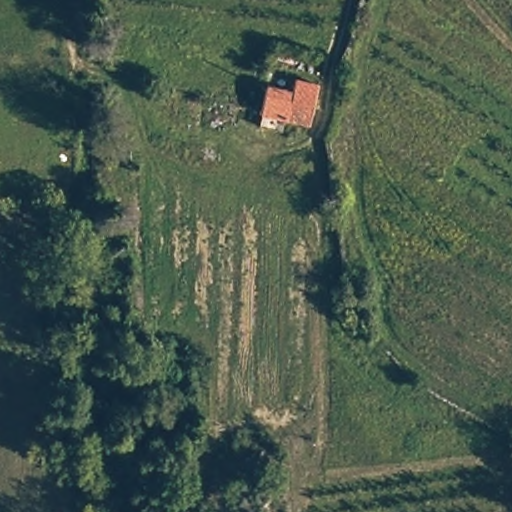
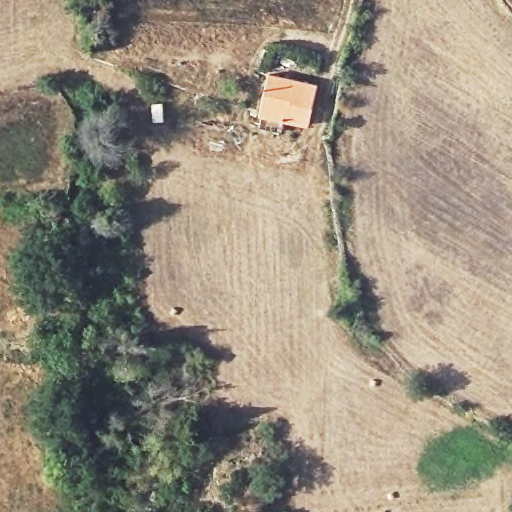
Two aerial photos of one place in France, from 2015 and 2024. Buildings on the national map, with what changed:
unchanged [(257,117),(264,84),(292,90),(295,75),(321,82),(310,127),(257,117)]

